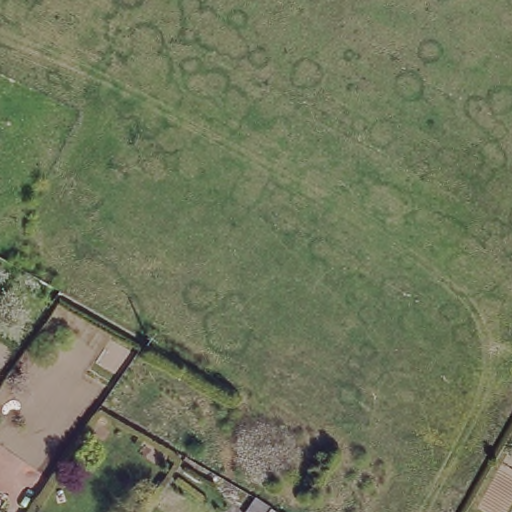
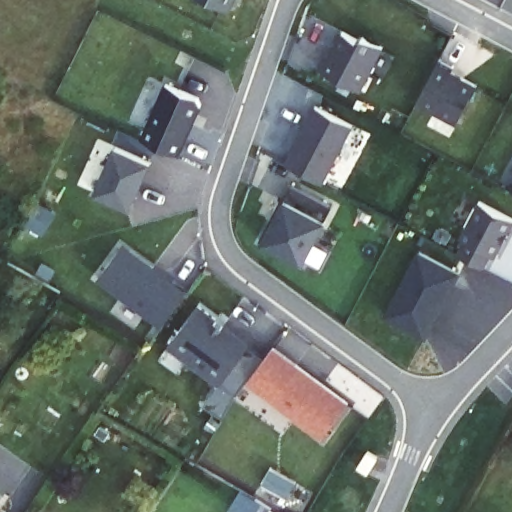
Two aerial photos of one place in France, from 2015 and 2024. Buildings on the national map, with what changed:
new [(207,0),(230,0),(225,9),(207,0)]
new [(322,51),(325,53),(338,29),(353,37),(359,33),(378,44),(355,87),(314,66),(322,51)]
new [(440,52),(455,60),(452,66),(477,79),(457,117),(417,96),(440,52)]
new [(166,84),(198,98),(201,105),(179,156),(142,140),(166,84)]
new [(313,105),(350,123),(320,181),(283,163),(313,105)]
new [(129,208),(94,193),(114,147),(149,162),(142,177),(135,193),(129,208)]
new [(323,200),(316,213),(320,215),(297,258),(257,237),(272,209),(268,207),(283,179),(323,200)]
new [(492,254),(485,268),(458,253),(465,240),(460,237),(480,201),(512,218),(512,226),(496,256),(492,254)]
new [(170,283),(172,281),(186,291),(161,325),(96,277),(119,246),(170,283)]
new [(457,272),(444,298),(440,299),(437,305),(439,307),(424,336),(384,315),(417,251),(457,272)]
new [(238,391),(222,418),(203,404),(219,382),(167,344),(196,305),(215,318),(213,321),(263,357),(238,391)]
new [(271,346),(347,402),(321,436),(245,381),(271,346)]
new [(376,460),(366,478),(354,470),(365,453),(376,460)]
new [(294,480),(286,495),(264,482),(272,468),(294,480)]
unchanged [(256,498),(269,507),(275,512),(244,512),(256,498)]

